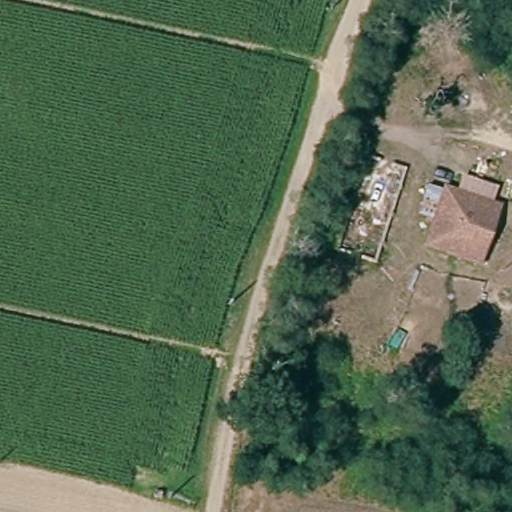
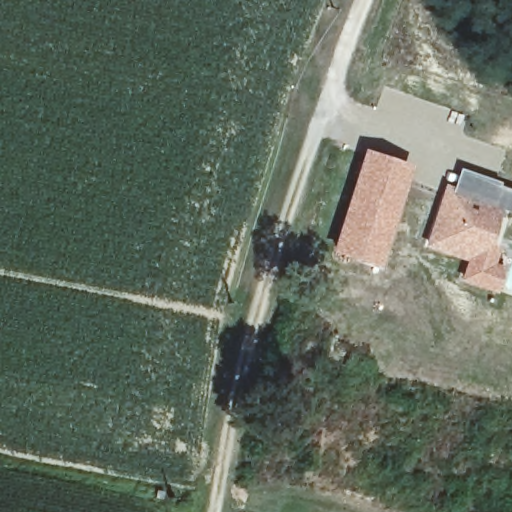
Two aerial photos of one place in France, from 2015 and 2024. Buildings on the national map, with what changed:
new [(363,147),(413,162),(380,267),(331,252),(363,147)]
demolished [(395,159),(407,178),(384,250),(370,257),(346,251),(337,235),(358,169),(370,156),(380,155),(395,159)]
unchanged [(492,195),(460,184),(466,164),(498,174),(492,195)]
unchanged [(448,187),(492,201),(475,257),(428,245),(448,187)]

